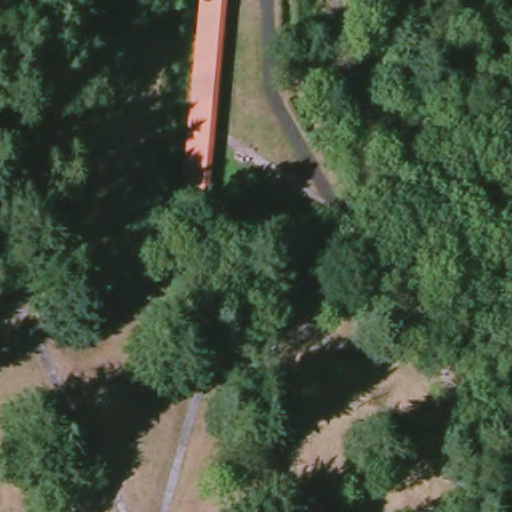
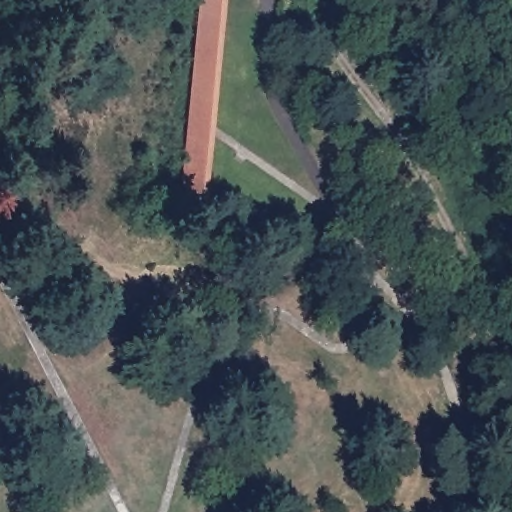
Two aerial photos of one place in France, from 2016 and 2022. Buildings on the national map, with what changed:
unchanged [(181,189),(198,0),(225,0),(207,192),(181,189)]

